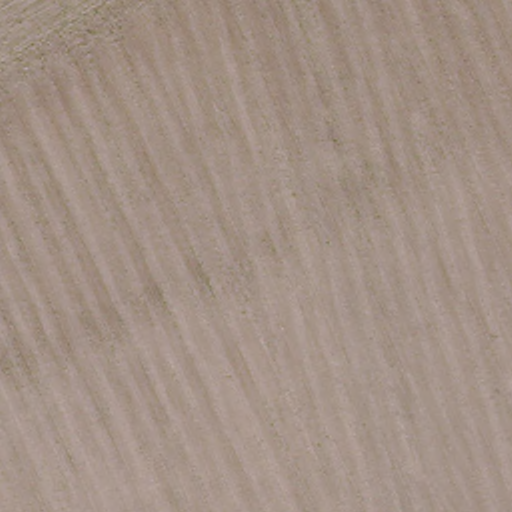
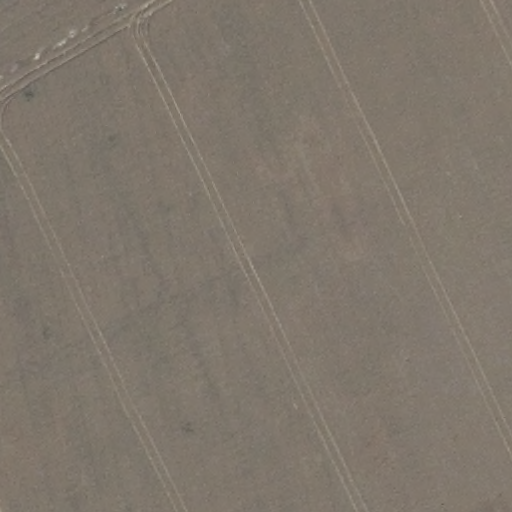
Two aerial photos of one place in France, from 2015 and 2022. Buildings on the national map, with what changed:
[]

